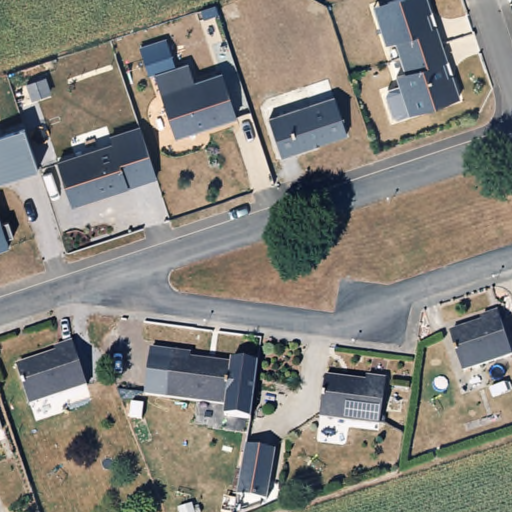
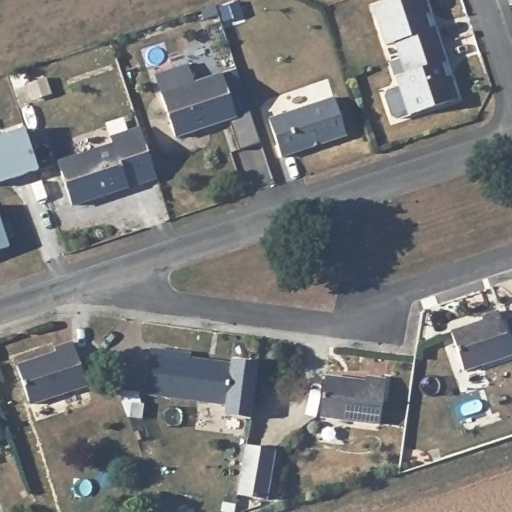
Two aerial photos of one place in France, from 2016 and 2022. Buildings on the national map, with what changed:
unchanged [(399,75),(408,72),(397,40),(388,43),(380,19),(375,6),(385,3),(392,0),(429,0),(432,11),(427,13),(432,27),(437,26),(449,60),(444,61),(449,76),(454,74),(461,96),(421,110),(412,114),(407,101),(399,75)]
unchanged [(188,60),(195,82),(223,73),(238,118),(174,139),(152,75),(188,60)]
unchanged [(337,101),(350,140),(285,161),(272,124),(337,101)]
unchanged [(116,141),(114,134),(140,126),(156,177),(71,206),(57,161),(116,141)]
unchanged [(20,129),(34,169),(0,182),(0,135),(20,129)]
unchanged [(9,222),(13,237),(5,238),(7,246),(0,248),(0,224),(9,222)]
unchanged [(483,328),(481,321),(496,316),(512,358),(458,376),(446,340),(483,328)]
unchanged [(195,352),(194,356),(257,362),(250,421),(224,416),(225,405),(145,395),(151,347),(195,352)]
unchanged [(52,362),(50,356),(68,350),(84,394),(25,413),(12,376),(52,362)]
unchanged [(360,385),(361,379),(380,382),(375,425),(315,417),(319,381),(360,385)]
unchanged [(278,448),(271,498),(242,494),(249,444),(278,448)]

